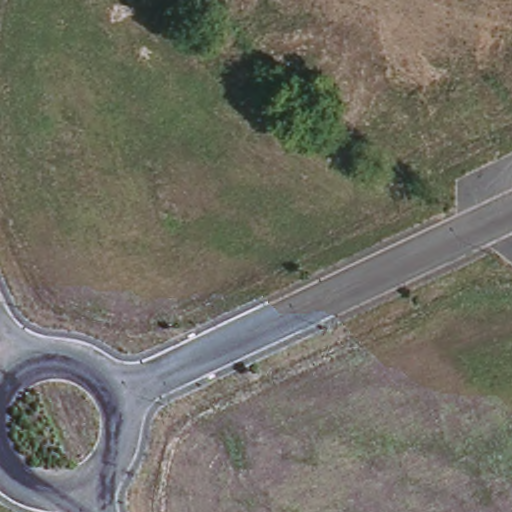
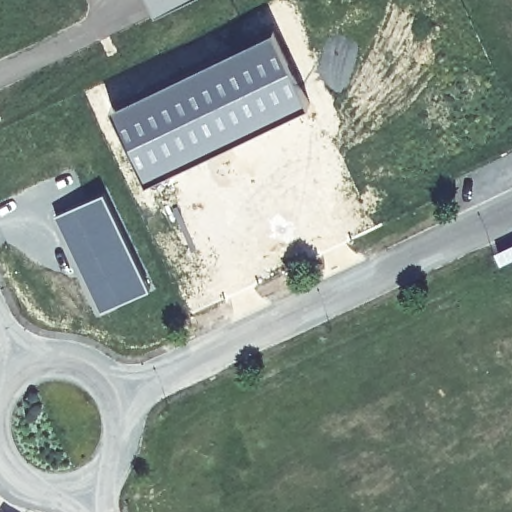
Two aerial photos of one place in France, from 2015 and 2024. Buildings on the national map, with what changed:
new [(149,0),(182,0),(155,13),(149,0)]
new [(275,26),(309,98),(146,176),(111,105),(275,26)]
new [(104,189),(150,286),(101,309),(55,214),(104,189)]

